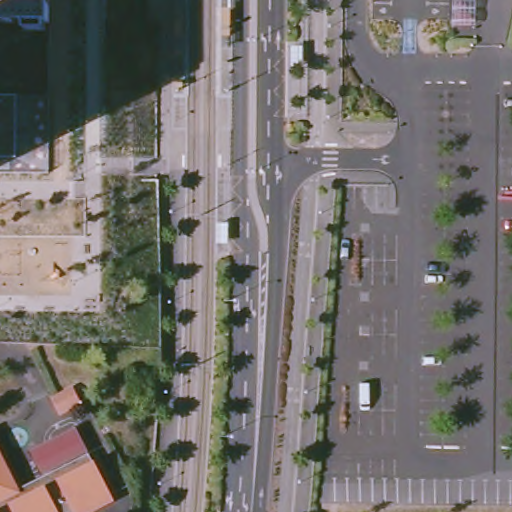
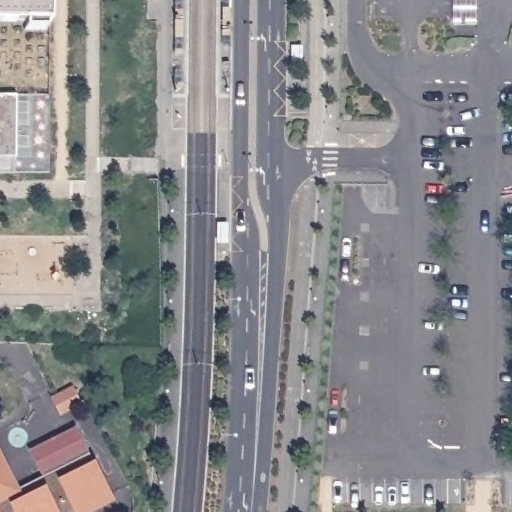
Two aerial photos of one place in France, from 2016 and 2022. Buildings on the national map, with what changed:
unchanged [(49,25),(0,24),(0,0),(49,0),(49,25)]
unchanged [(56,403),(74,394),(81,407),(63,417),(56,403)]
unchanged [(45,482),(31,455),(76,432),(90,460),(45,482)]
unchanged [(95,512),(0,512),(0,458),(19,495),(45,482),(90,460),(112,503),(95,512)]

